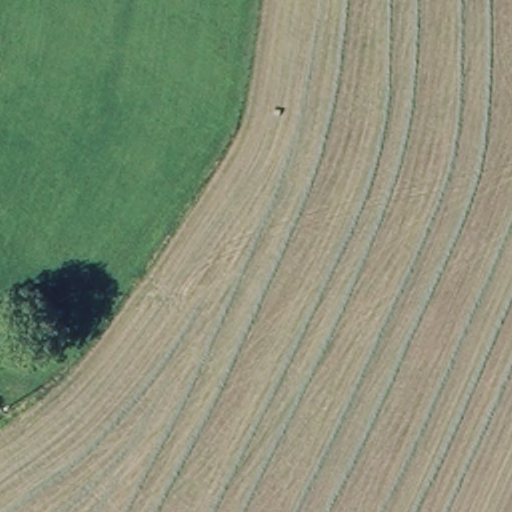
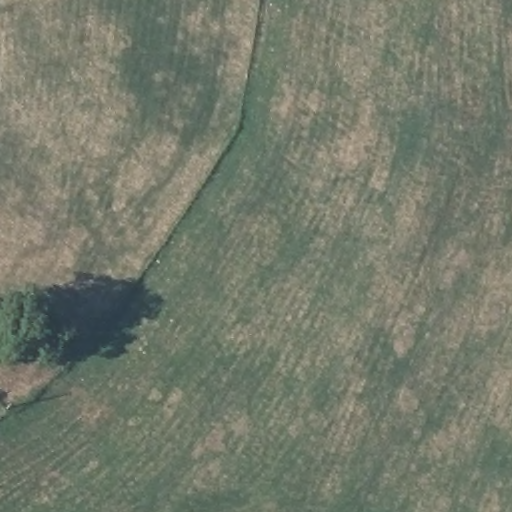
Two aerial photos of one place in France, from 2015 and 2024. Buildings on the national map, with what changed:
[]

